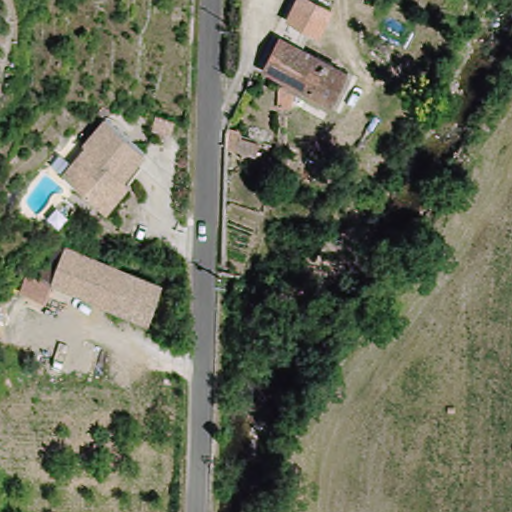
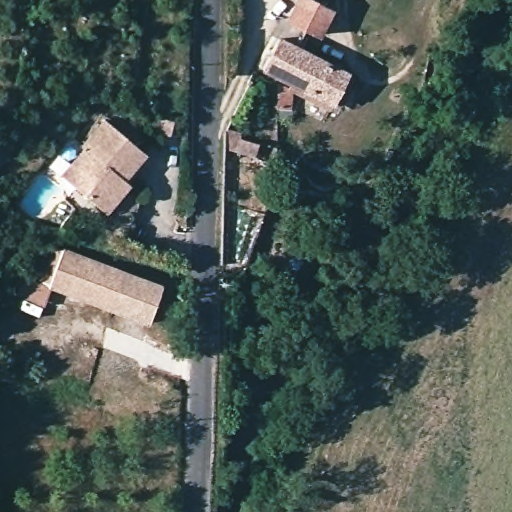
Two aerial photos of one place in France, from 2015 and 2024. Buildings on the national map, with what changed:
unchanged [(334,10),(320,39),(286,20),(296,0),(314,0),(334,10)]
unchanged [(338,109),(283,84),(270,77),(283,47),(341,74),(351,78),(338,109)]
unchanged [(110,127),(146,156),(127,184),(139,198),(116,224),(68,182),(110,127)]
unchanged [(228,130),(241,132),(242,139),(260,144),(256,158),(234,151),(226,150),(228,130)]
unchanged [(34,282),(49,246),(168,285),(153,326),(34,282)]

